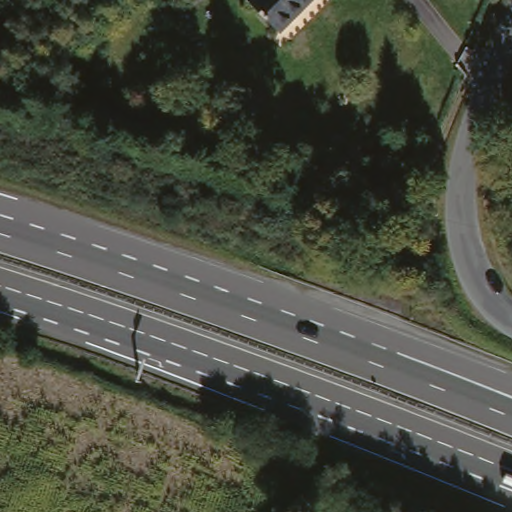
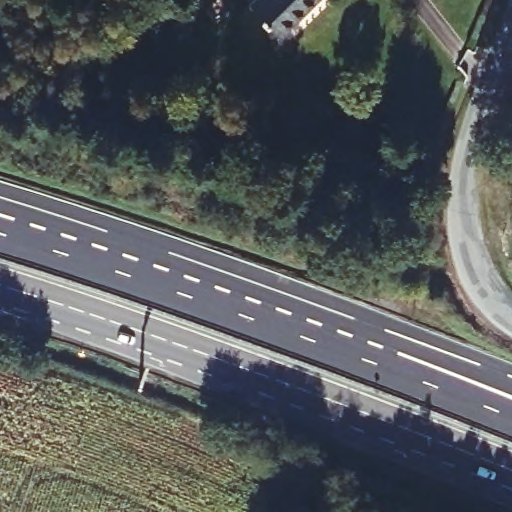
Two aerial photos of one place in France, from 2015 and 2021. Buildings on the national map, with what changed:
unchanged [(299,20),(280,37),(250,4),(254,0),(313,0),(296,15),(299,20)]

